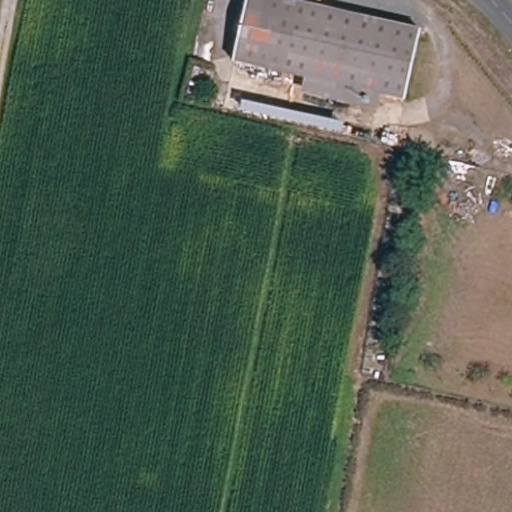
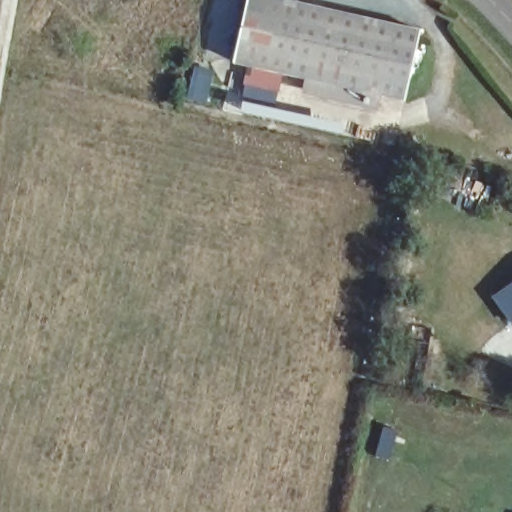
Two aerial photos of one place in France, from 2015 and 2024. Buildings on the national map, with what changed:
unchanged [(405,116),(379,111),(375,121),(295,103),(300,93),(227,74),(246,0),(271,0),(421,35),(405,116)]
new [(512,279),(512,326),(511,327),(489,296),(512,279)]

